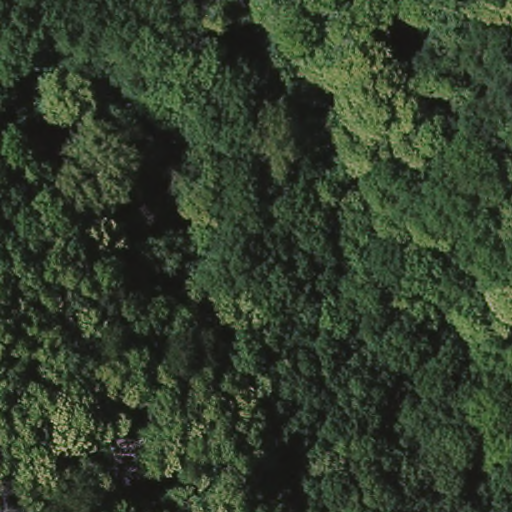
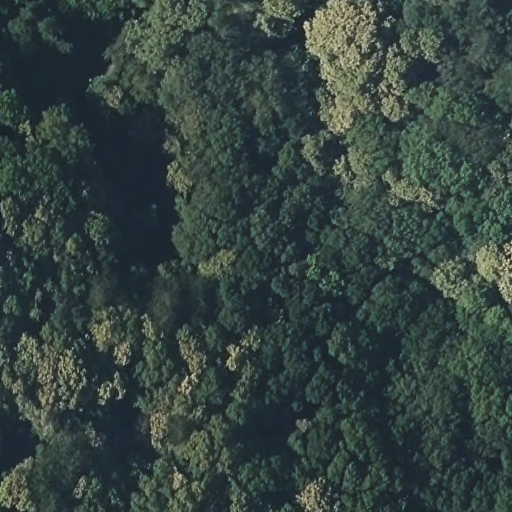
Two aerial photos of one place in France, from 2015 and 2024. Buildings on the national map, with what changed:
unchanged [(446,137),(440,140),(429,130),(420,119),(453,101),(461,131),(475,125),(483,139),(504,130),(512,153),(512,158),(475,171),(465,149),(458,151),(446,137)]

